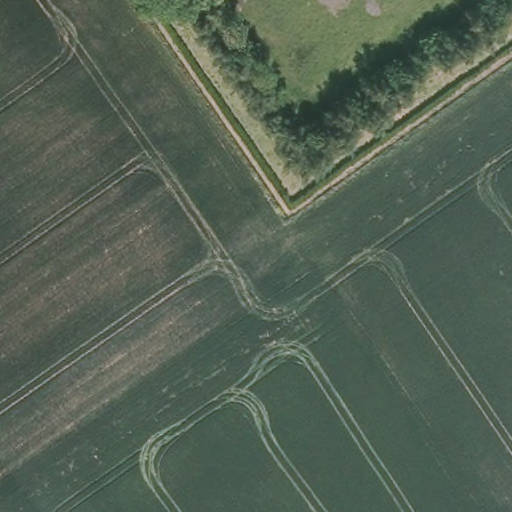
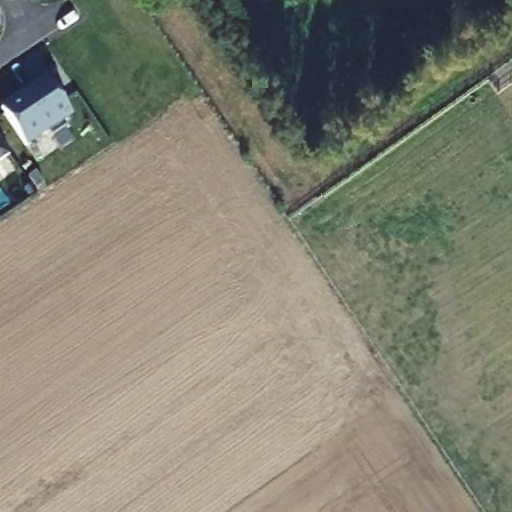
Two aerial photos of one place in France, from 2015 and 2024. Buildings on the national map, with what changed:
new [(2,106),(45,77),(70,113),(60,121),(65,126),(51,136),(45,130),(27,144),(2,106)]
new [(0,161),(0,141),(9,154),(0,161)]

